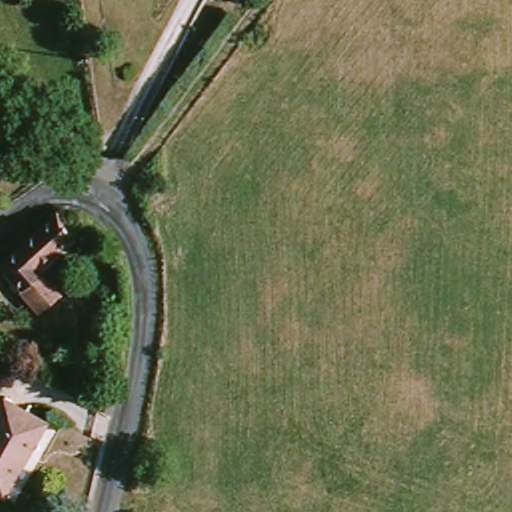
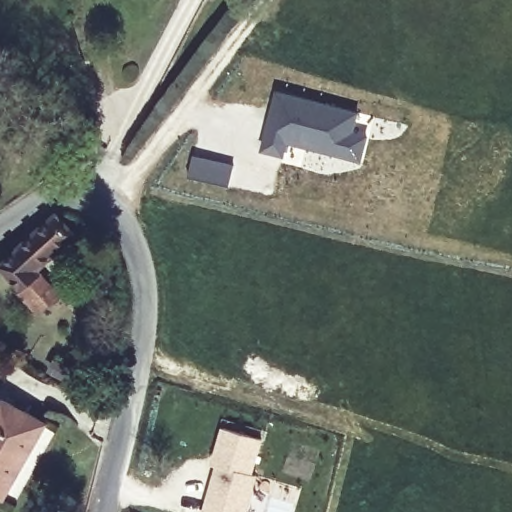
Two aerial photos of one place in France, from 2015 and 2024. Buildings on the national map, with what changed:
new [(277,89),(357,112),(352,132),(367,135),(360,160),(287,142),(284,156),(262,150),(277,89)]
unchanged [(35,275),(55,303),(35,319),(0,272),(0,265),(56,224),(73,247),(35,275)]
unchanged [(2,406),(39,424),(1,498),(0,497),(0,411),(2,406)]
new [(221,424),(263,437),(253,474),(212,465),(210,464),(221,424)]
new [(212,465),(253,474),(256,474),(246,512),(200,512),(212,465)]

